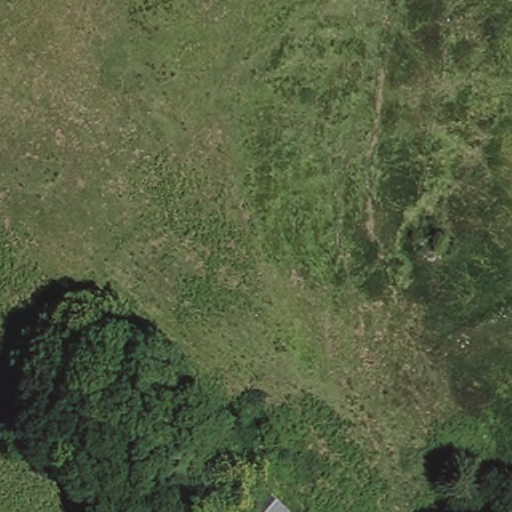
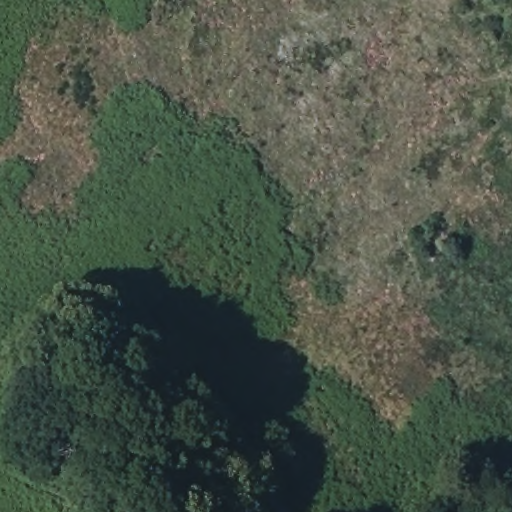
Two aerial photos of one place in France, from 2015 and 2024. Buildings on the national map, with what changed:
unchanged [(267,497),(283,512),(252,512),(267,497)]

